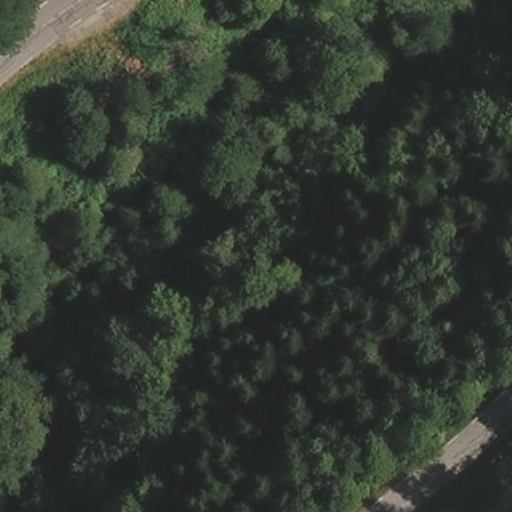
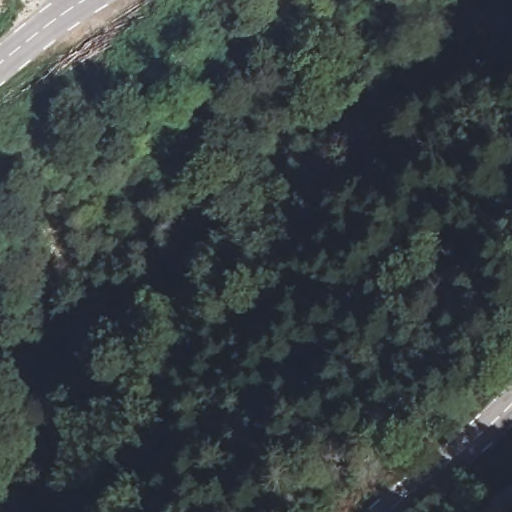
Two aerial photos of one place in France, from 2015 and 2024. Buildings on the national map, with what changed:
[]

